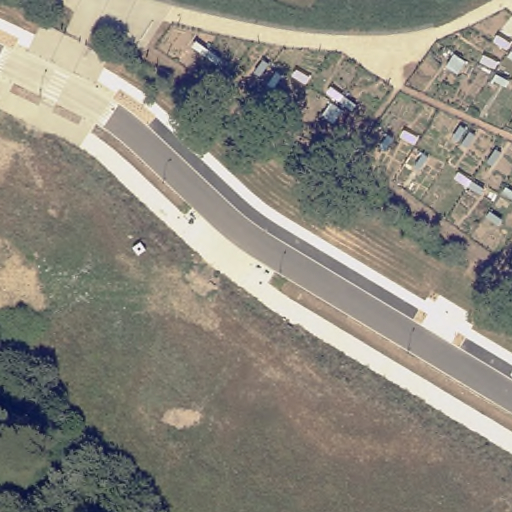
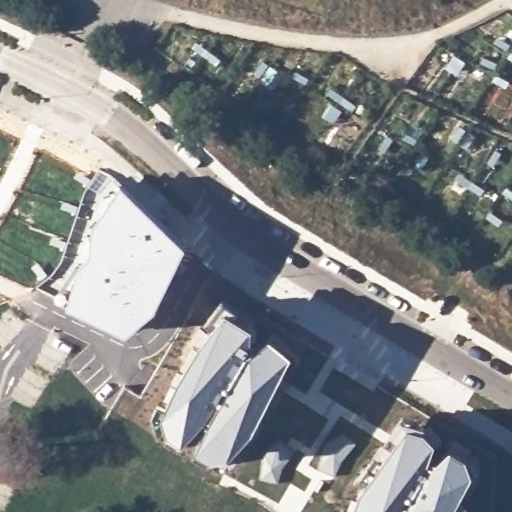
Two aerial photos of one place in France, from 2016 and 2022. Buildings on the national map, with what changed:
new [(49,275),(59,262),(70,230),(82,194),(98,169),(161,220),(115,326),(31,287),(49,275)]
new [(162,401),(193,343),(220,301),(236,308),(232,313),(252,325),(251,336),(261,341),(268,337),(292,352),(252,430),(233,451),(225,458),(204,460),(165,436),(158,415),(162,401)]
new [(360,488),(398,435),(390,431),(402,414),(424,426),(436,441),(426,464),(430,465),(451,445),(464,450),(473,471),(450,512),(351,512),(360,488)]
new [(343,512),(341,512),(341,511),(343,512)]

